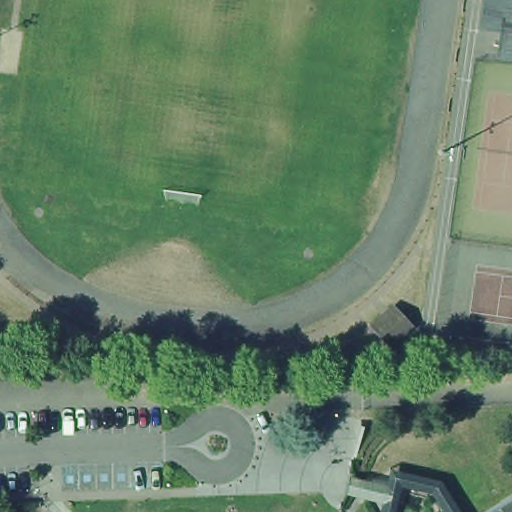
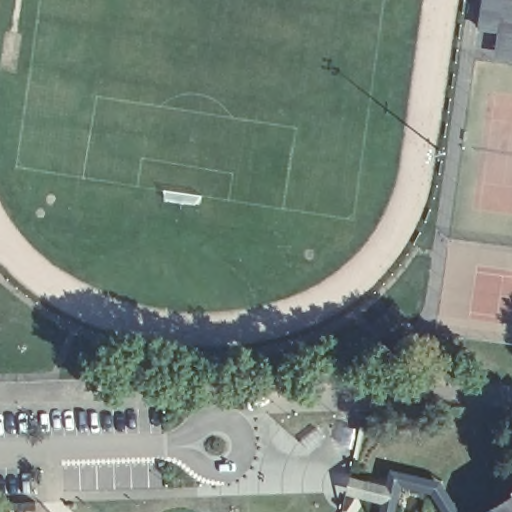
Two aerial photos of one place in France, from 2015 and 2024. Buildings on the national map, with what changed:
unchanged [(499,32),(477,29),(481,0),(512,0),(512,61),(495,59),(499,32)]
unchanged [(384,352),(367,334),(389,316),(405,335),(385,352),(384,352)]
unchanged [(392,467),(445,482),(462,512),(443,512),(442,509),(431,493),(404,486),(401,497),(347,482),(350,472),(387,483),(392,467)]
unchanged [(343,493),(344,491),(347,482),(401,497),(398,512),(381,512),(384,505),(343,493)]
unchanged [(512,512),(488,512),(512,497),(512,512)]

